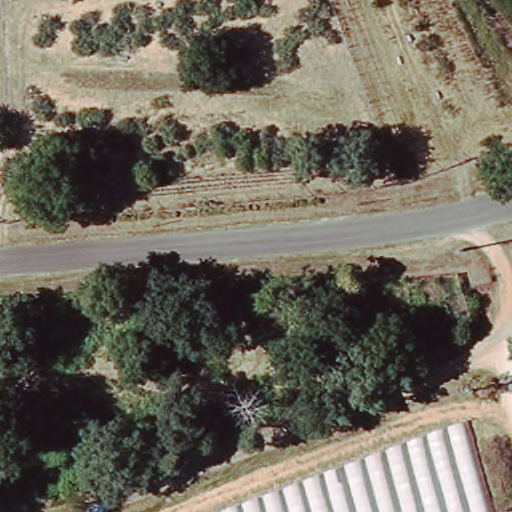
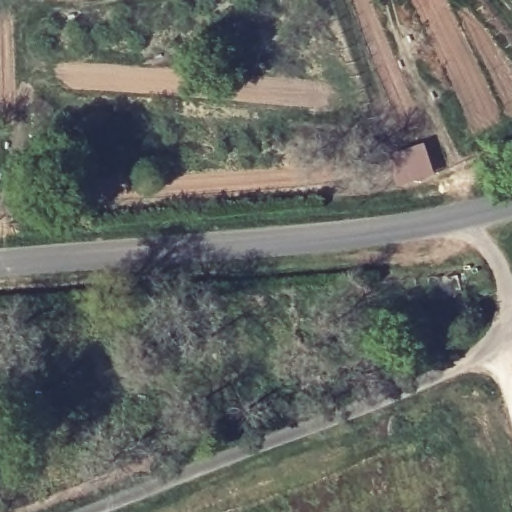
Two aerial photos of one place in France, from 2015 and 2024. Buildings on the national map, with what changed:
new [(425,142),(435,174),(398,186),(388,155),(425,142)]
demolished [(363,451),(471,443),(492,512),(190,512),(242,491),(363,451)]

